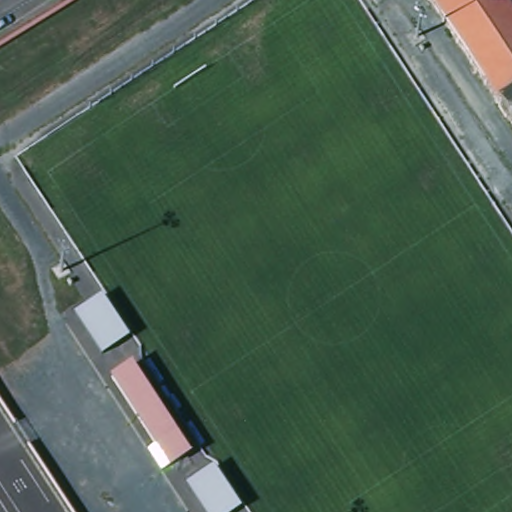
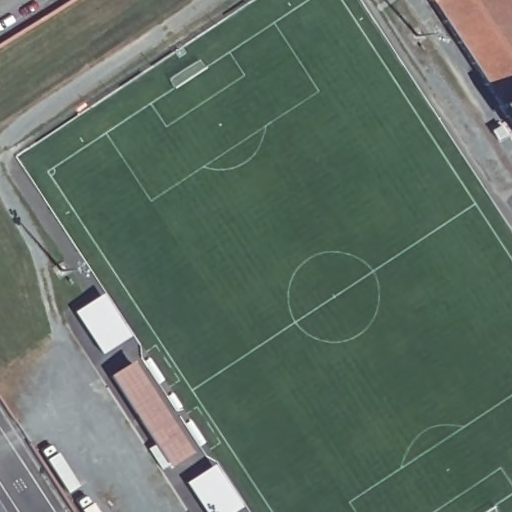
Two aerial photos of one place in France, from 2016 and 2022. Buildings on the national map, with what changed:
unchanged [(500,106),(501,105),(432,0),(431,1),(430,0),(507,0),(512,8),(512,125),(500,106)]
unchanged [(41,17),(49,32),(33,42),(24,29),(41,17)]
unchanged [(75,311),(102,293),(130,337),(102,353),(75,311)]
unchanged [(133,365),(192,452),(171,466),(114,377),(133,365)]
unchanged [(187,482),(214,465),(240,508),(234,512),(205,512),(187,482)]

